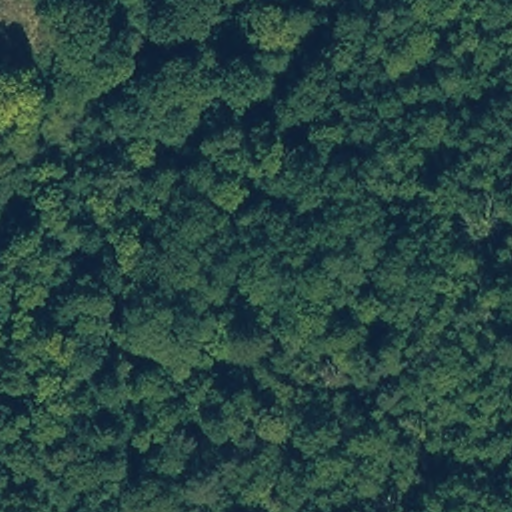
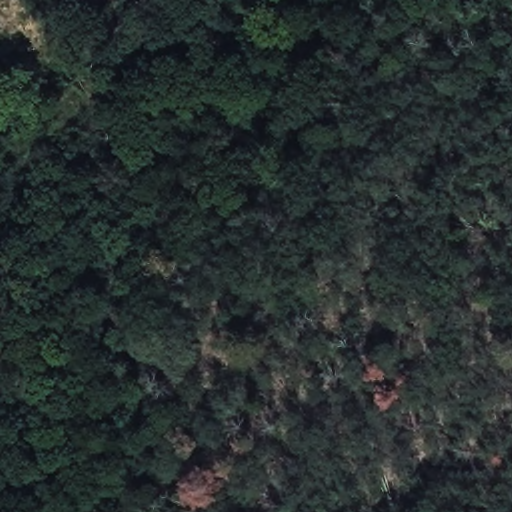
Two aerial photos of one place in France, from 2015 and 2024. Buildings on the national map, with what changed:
unchanged [(137,512),(132,501),(144,489),(178,505),(172,512),(137,512)]

